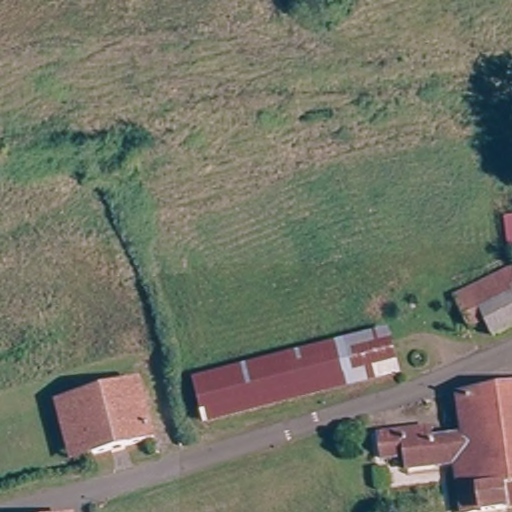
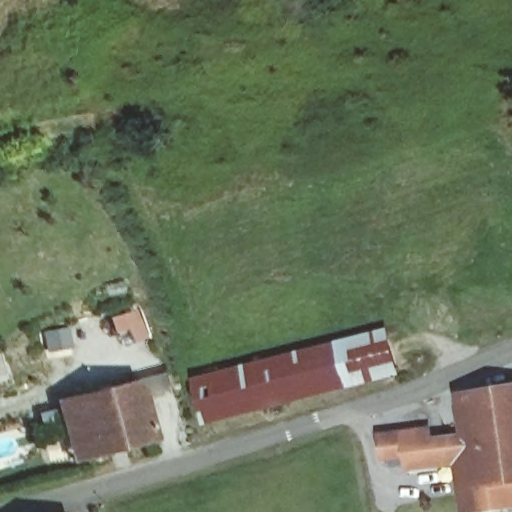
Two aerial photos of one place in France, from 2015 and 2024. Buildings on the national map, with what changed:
demolished [(502,216),(512,215),(512,256),(510,256),(502,216)]
demolished [(512,327),(491,336),(487,323),(467,332),(450,295),(512,267),(512,327)]
unchanged [(399,375),(204,417),(195,377),(391,335),(399,375)]
unchanged [(72,460),(59,407),(58,402),(63,401),(74,399),(139,385),(153,442),(87,457),(77,459),(72,460)]
unchanged [(456,453),(456,405),(512,399),(512,491),(496,493),(501,512),(477,512),(474,495),(469,496),(464,455),(456,453)]
unchanged [(380,465),(377,444),(427,437),(431,456),(456,453),(454,466),(409,473),(407,461),(394,463),(385,464),(380,465)]

